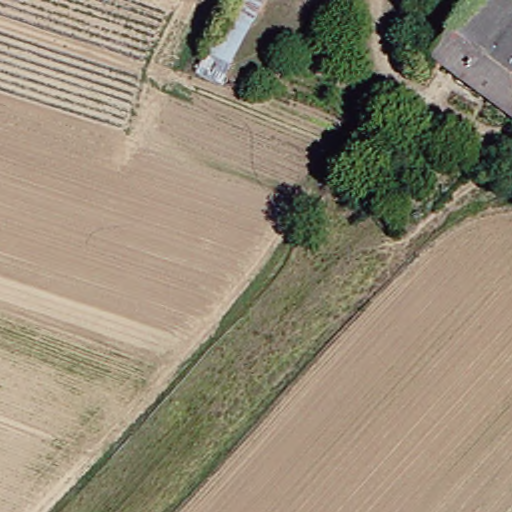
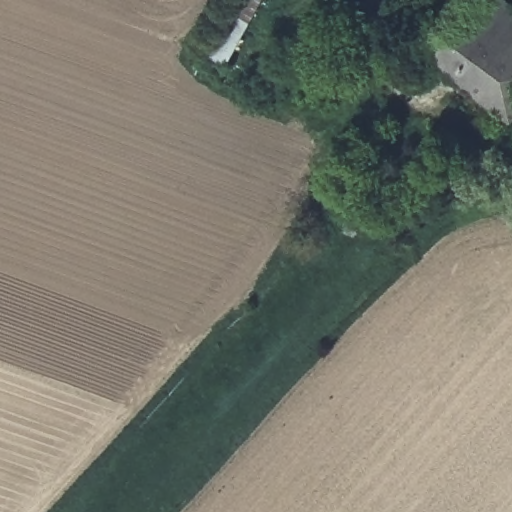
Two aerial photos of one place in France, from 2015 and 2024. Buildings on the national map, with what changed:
unchanged [(218,75),(215,81),(187,67),(232,0),(253,0),(214,74),(218,75)]
unchanged [(401,70),(413,54),(452,0),(492,0),(504,9),(512,14),(512,99),(500,116),(422,60),(410,77),(401,70)]

